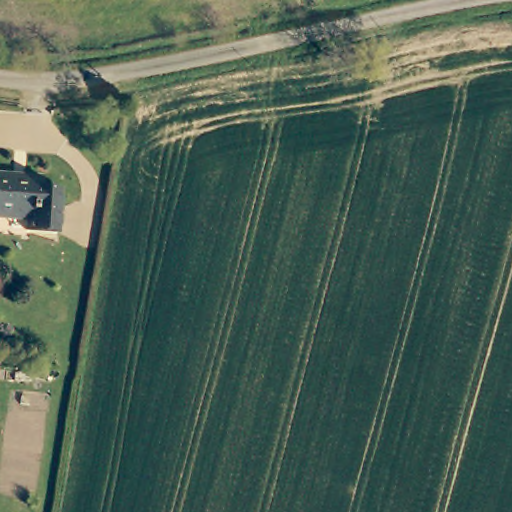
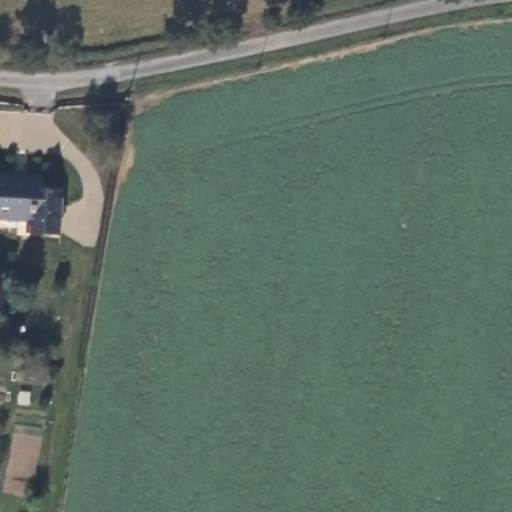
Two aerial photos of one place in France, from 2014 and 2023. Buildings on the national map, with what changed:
unchanged [(8,174),(56,177),(56,189),(76,190),(73,233),(40,231),(40,219),(5,216),(5,215),(0,215),(0,169),(8,169),(8,174)]

